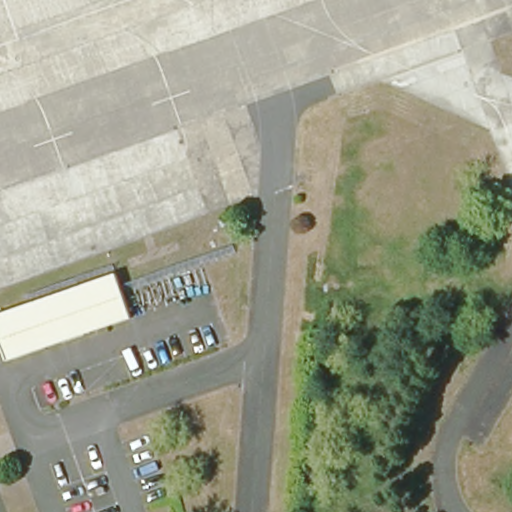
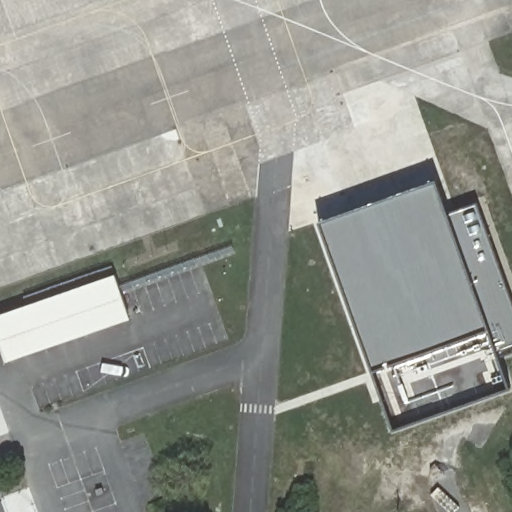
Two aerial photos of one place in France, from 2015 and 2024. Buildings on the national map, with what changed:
new [(440,213),(472,203),(512,308),(512,343),(491,351),(504,382),(386,422),(316,219),(428,179),(440,213)]
unchanged [(5,365),(0,350),(0,317),(114,276),(130,320),(5,365)]

